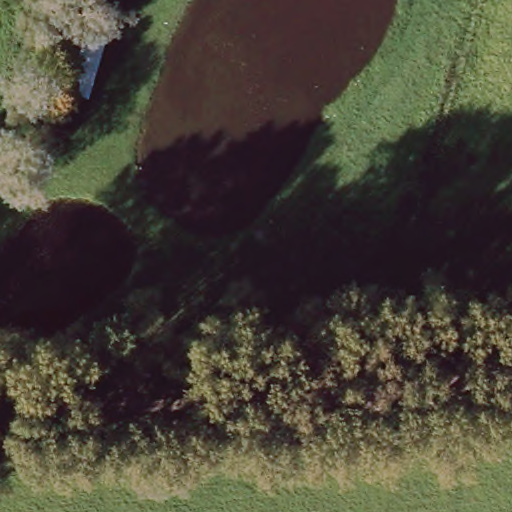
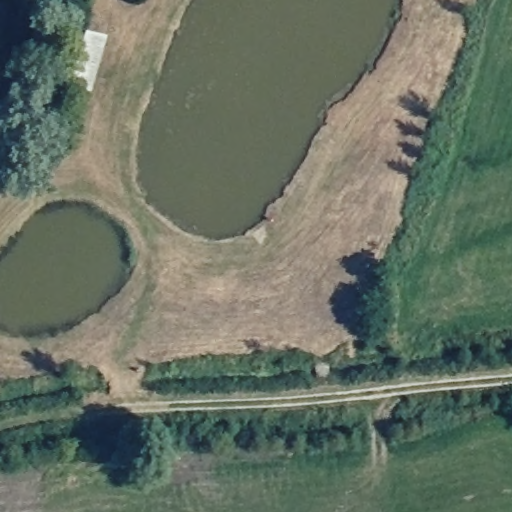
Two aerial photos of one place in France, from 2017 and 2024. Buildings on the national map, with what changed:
unchanged [(81,32),(109,40),(91,106),(65,100),(81,32)]

